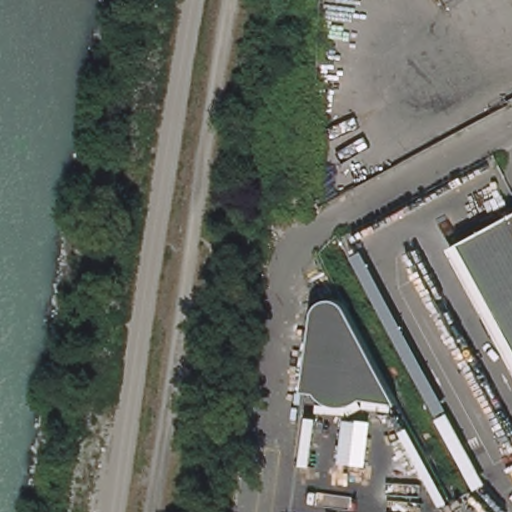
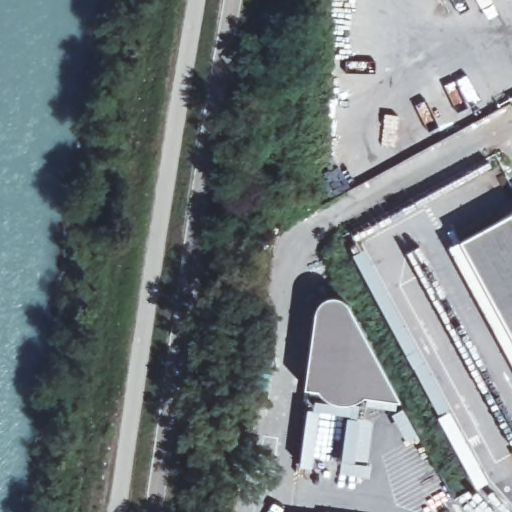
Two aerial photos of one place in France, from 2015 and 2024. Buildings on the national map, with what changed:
unchanged [(466,242),(512,217),(512,365),(451,251),(466,242)]
unchanged [(367,396),(365,398),(362,400),(358,402),(353,404),(350,405),(347,405),(345,405),(344,405),(342,405),(339,404),(337,403),(335,402),(332,402),(330,400),(328,399),(326,397),(325,396),(324,394),(322,392),(321,391),(320,390),(306,387),(315,322),(317,308),(323,300),(330,296),(336,296),(342,297),(350,306),(353,312),(366,337),(371,346),(381,364),(391,382),(397,393),(401,401),(367,396)]

